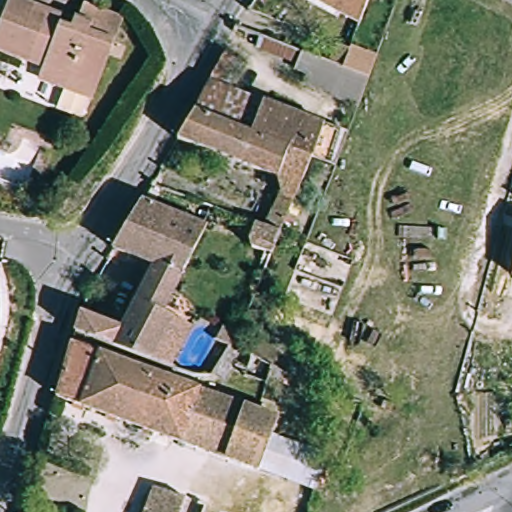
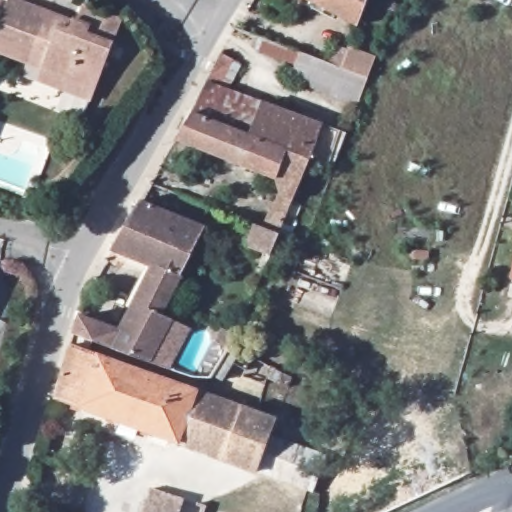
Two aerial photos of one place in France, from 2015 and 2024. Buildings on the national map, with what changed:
unchanged [(47,64),(32,58),(0,46),(0,32),(13,0),(40,0),(39,4),(69,15),(75,12),(83,14),(89,0),(95,0),(105,5),(107,0),(123,0),(131,3),(96,92),(70,82),(44,72),(47,64)]
unchanged [(319,0),(372,0),(363,24),(319,0)]
unchanged [(317,75),(253,49),(259,36),(308,55),(327,65),(336,46),(348,51),(374,62),(368,80),(359,109),(333,99),(311,90),(317,75)]
unchanged [(265,101),(252,134),(246,132),(194,110),(210,80),(265,101)]
unchanged [(249,245),(250,238),(256,224),(265,227),(280,193),(276,180),(233,162),(246,132),(252,134),(265,101),(310,120),(323,126),(312,160),(280,234),(271,257),(249,245)]
unchanged [(177,137),(194,110),(246,132),(233,162),(177,137)]
unchanged [(347,148),(339,170),(312,160),(323,126),(351,137),(347,148)]
unchanged [(143,197),(209,226),(181,272),(164,308),(179,317),(199,328),(177,367),(155,359),(115,345),(73,332),(82,311),(123,323),(151,262),(108,247),(143,197)]
unchanged [(259,472),(55,396),(72,346),(278,419),(259,472)]
unchanged [(305,473),(283,463),(289,448),(312,458),(305,473)]
unchanged [(190,512),(130,512),(142,472),(197,490),(190,512)]

